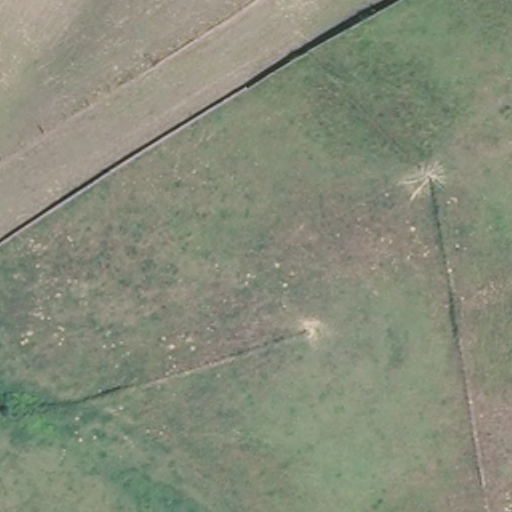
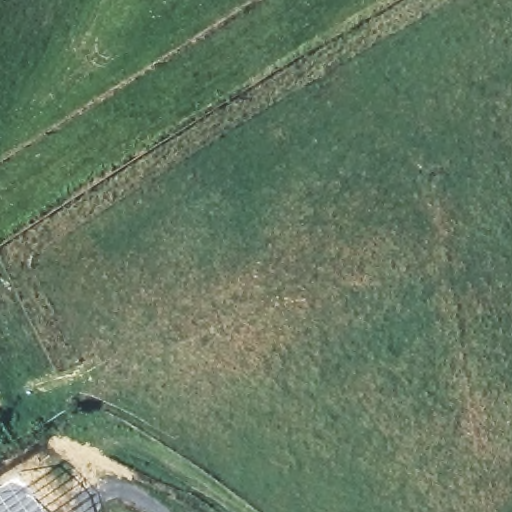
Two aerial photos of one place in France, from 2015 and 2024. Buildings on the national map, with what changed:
new [(48,512),(0,512),(0,482),(17,470),(48,512)]

